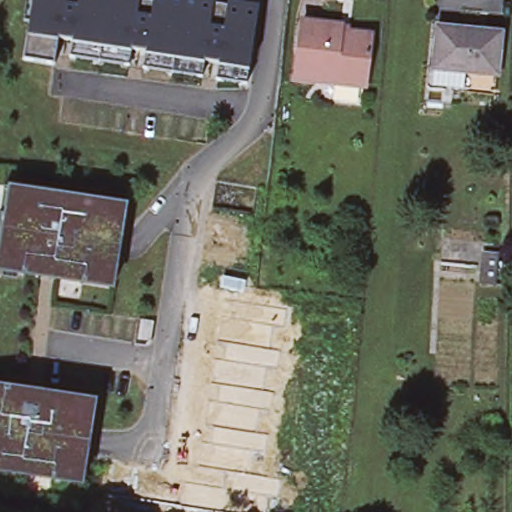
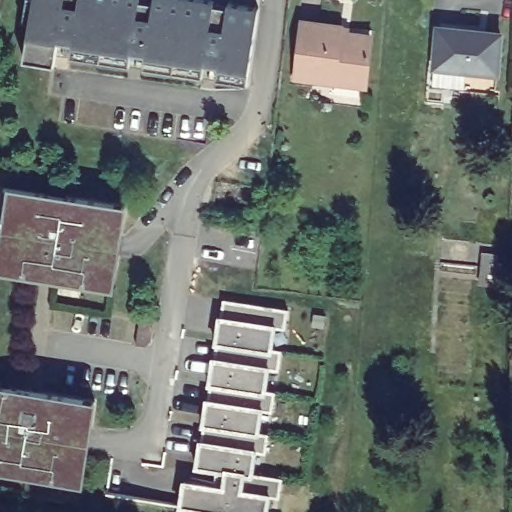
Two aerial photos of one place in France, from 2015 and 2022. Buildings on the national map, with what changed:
unchanged [(212,79),(214,63),(201,61),(198,77),(139,68),(141,52),(128,50),(125,66),(66,57),(68,42),(55,39),(51,65),(20,60),(24,35),(25,24),(29,0),(206,0),(209,1),(209,5),(223,7),(223,2),(254,7),(245,67),(243,83),(212,79)]
unchanged [(343,27),(373,31),(372,37),(366,89),(296,80),(303,22),(343,27)]
unchanged [(433,87),(434,72),(438,32),(501,37),(497,77),(466,74),(464,90),(433,87)]
unchanged [(0,274),(0,239),(7,192),(18,193),(128,210),(116,292),(85,287),(61,283),(5,275),(0,274)]
unchanged [(493,260),(492,288),(477,288),(478,260),(493,260)]
new [(213,485),(214,470),(196,467),(201,441),(203,424),(208,398),(210,384),(213,357),(216,342),(220,316),(224,298),(288,308),(286,330),(276,328),(274,348),(281,349),(279,371),(270,370),(267,390),(276,392),(273,412),(264,411),(261,433),(268,434),(266,453),(257,452),(254,476),(282,480),(280,498),(270,498),(268,512),(215,512),(178,507),(183,479),(213,485)]
unchanged [(88,487),(0,475),(0,390),(99,405),(88,487)]

